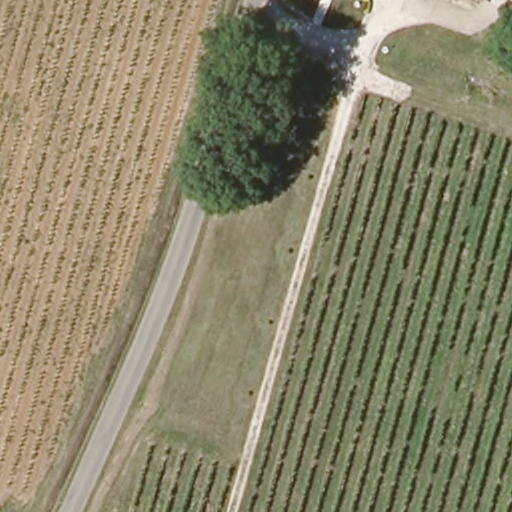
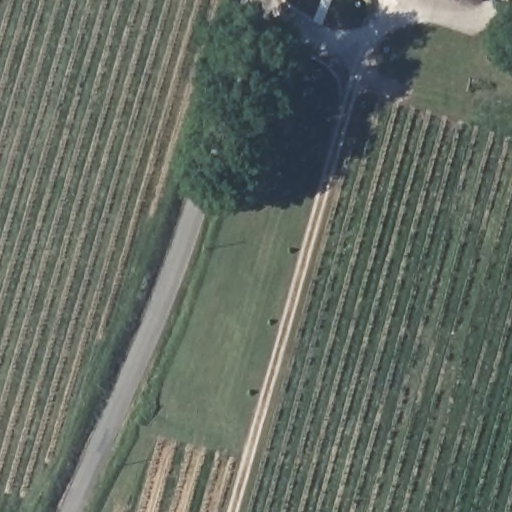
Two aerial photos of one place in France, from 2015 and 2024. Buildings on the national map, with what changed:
unchanged [(468,0),(481,0),(479,4),(468,0)]

